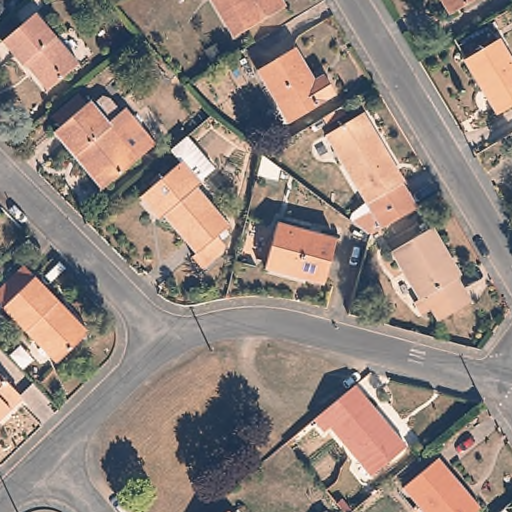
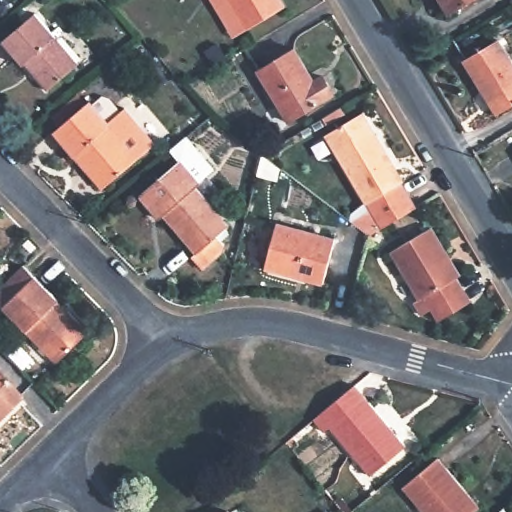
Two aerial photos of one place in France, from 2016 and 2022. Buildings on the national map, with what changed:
unchanged [(228,0),(246,29),(233,37),(211,0),(228,0)]
unchanged [(246,29),(228,0),(280,0),(284,6),(246,29)]
unchanged [(441,0),(472,0),(448,13),(441,0)]
unchanged [(79,63),(47,90),(24,63),(22,65),(2,40),(35,12),(79,63)]
unchanged [(512,104),(496,114),(464,60),(498,39),(512,62),(512,104)]
unchanged [(257,71),(293,49),(312,80),(322,75),(333,93),(287,121),(257,71)]
unchanged [(105,186),(77,153),(74,156),(54,131),(89,101),(107,122),(124,107),(155,143),(105,186)]
unchanged [(367,203),(326,134),(362,113),(404,181),(402,183),(416,207),(382,227),(369,235),(352,222),(371,209),(367,203)]
unchanged [(164,214),(160,218),(156,213),(141,195),(180,162),(170,150),(187,136),(196,147),(214,169),(199,182),(200,184),(196,188),(229,226),(217,236),(224,245),(222,252),(202,268),(192,256),(197,252),(164,214)]
unchanged [(323,283),(265,267),(277,223),(336,239),(323,283)]
unchanged [(438,321),(432,309),(422,315),(414,302),(420,298),(390,251),(430,227),(448,256),(460,275),(456,278),(471,302),(438,321)]
unchanged [(56,301),(67,312),(68,311),(88,331),(57,363),(2,307),(0,305),(0,287),(23,265),(34,275),(57,300),(56,301)]
unchanged [(21,397),(0,417),(0,376),(21,397)]
unchanged [(406,446),(370,475),(330,427),(324,431),(313,419),(355,385),(406,446)]
unchanged [(438,457),(480,507),(474,512),(424,512),(402,487),(438,457)]
unchanged [(505,510),(507,512),(503,512),(505,510)]
unchanged [(227,511),(228,512),(226,512),(227,511)]

